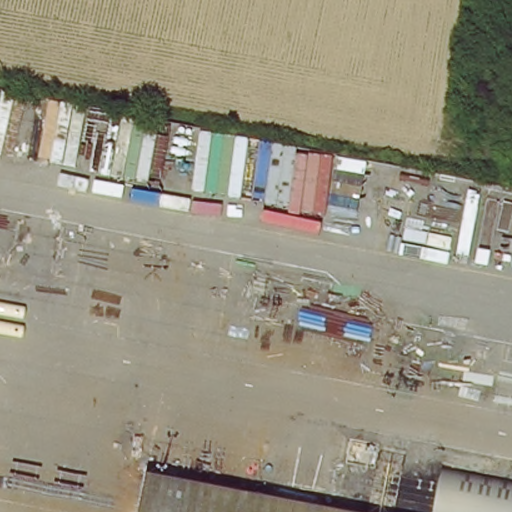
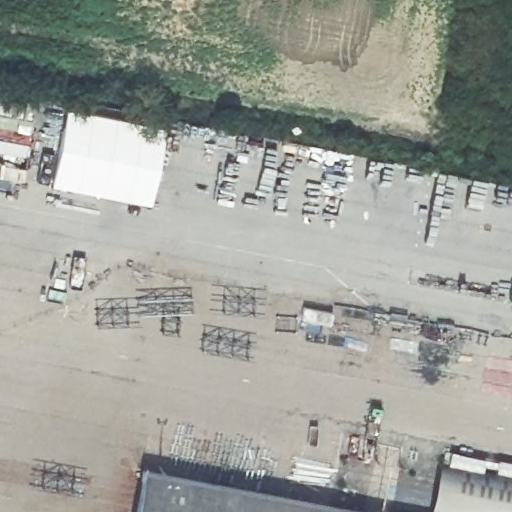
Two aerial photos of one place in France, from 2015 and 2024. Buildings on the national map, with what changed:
new [(67,108),(166,126),(151,205),(51,184),(67,108)]
unchanged [(512,484),(512,512),(432,512),(441,467),(512,484)]
unchanged [(367,512),(134,512),(142,469),(367,512)]

